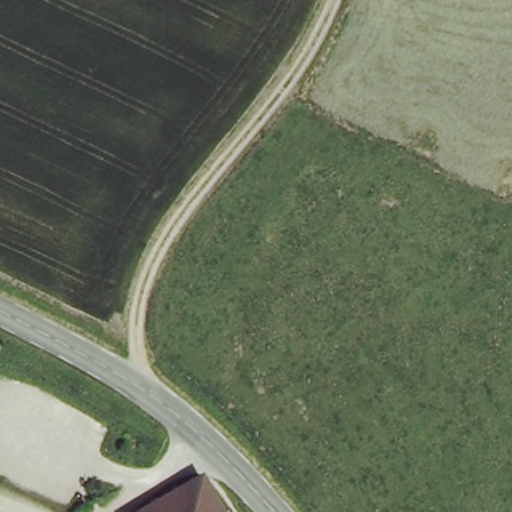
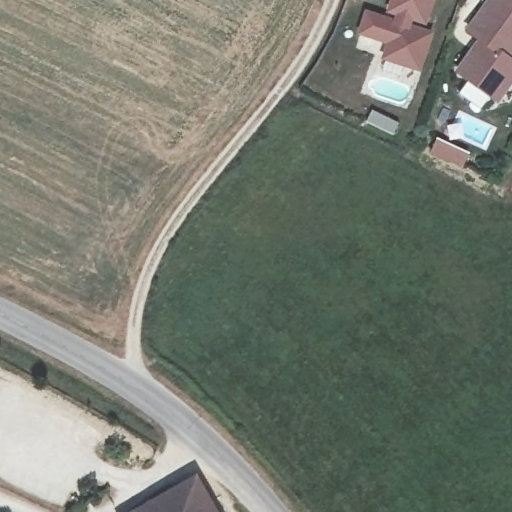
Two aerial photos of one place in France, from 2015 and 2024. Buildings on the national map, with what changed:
new [(365,9),(394,17),(395,15),(385,12),(390,0),(435,0),(426,25),(413,20),(412,24),(434,30),(421,71),(382,60),(386,44),(358,35),(365,9)]
new [(455,71),(475,37),(464,29),(487,0),(512,0),(512,83),(497,102),(455,71)]
new [(437,141),(465,154),(460,165),(432,152),(437,141)]
unchanged [(197,491),(208,512),(157,512),(197,491)]

